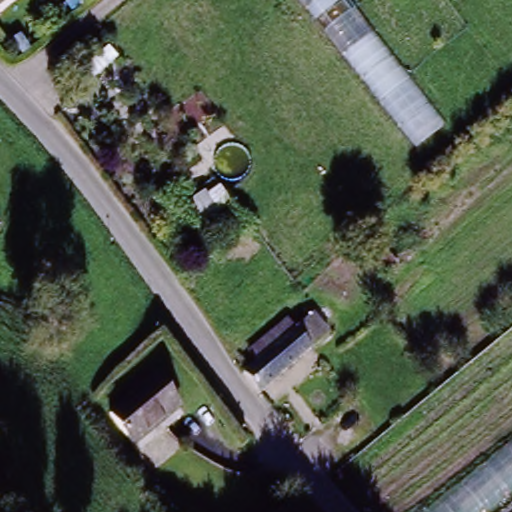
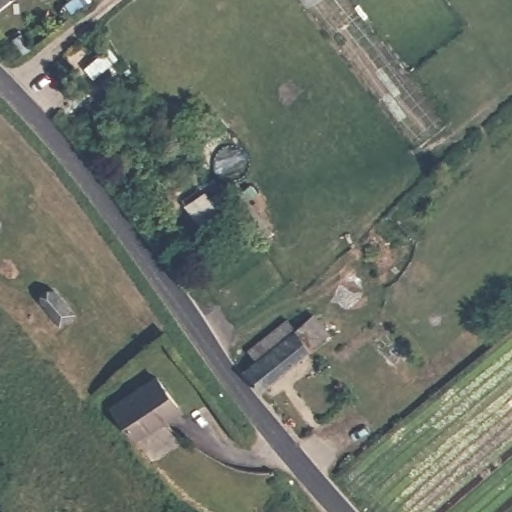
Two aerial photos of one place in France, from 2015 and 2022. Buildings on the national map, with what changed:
unchanged [(0,2),(0,0),(2,0),(0,2)]
unchanged [(452,124),(419,146),(306,0),(356,0),(452,124)]
unchanged [(0,232),(0,214),(9,225),(0,232)]
demolished [(401,261),(385,279),(367,263),(383,245),(401,261)]
unchanged [(331,333),(269,392),(249,371),(264,357),(255,350),(290,316),(299,325),(315,310),(335,330),(331,333)]
unchanged [(180,400),(176,403),(182,410),(142,445),(111,410),(155,372),(180,400)]
demolished [(512,512),(420,512),(512,438),(512,512)]

